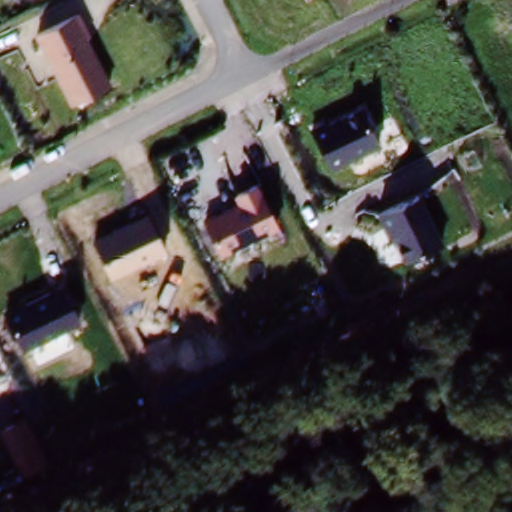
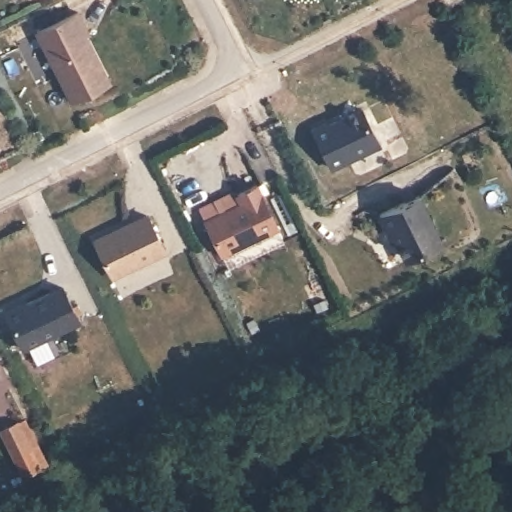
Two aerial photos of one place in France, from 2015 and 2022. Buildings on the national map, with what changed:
unchanged [(91,33),(85,36),(111,83),(73,103),(34,34),(79,10),(91,33)]
unchanged [(381,146),(333,170),(314,137),(362,111),(381,146)]
unchanged [(279,229),(221,258),(203,222),(237,205),(233,196),(256,184),(279,229)]
unchanged [(441,245),(405,262),(393,239),(389,242),(376,216),(419,196),(441,245)]
unchanged [(168,255),(111,283),(93,242),(148,213),(168,255)]
unchanged [(79,322),(20,350),(4,312),(61,285),(79,322)]

